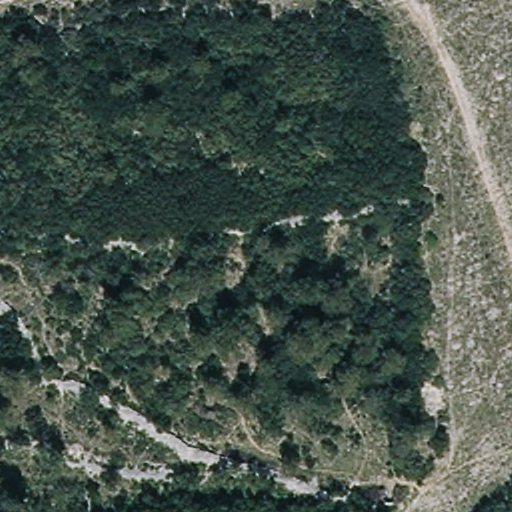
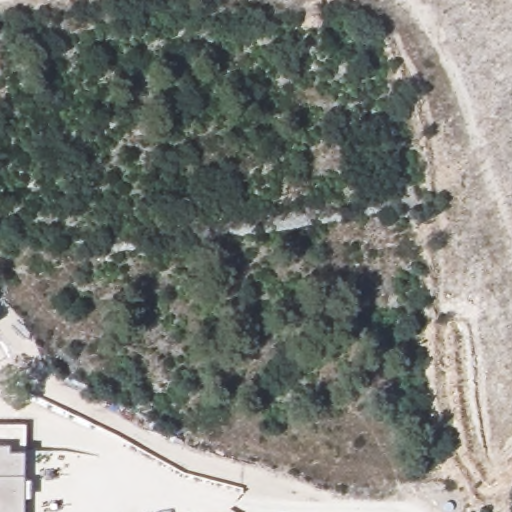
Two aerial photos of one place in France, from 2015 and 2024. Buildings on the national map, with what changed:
new [(24,453),(24,480),(31,481),(31,498),(24,498),(23,512),(0,512),(0,426),(24,426),(24,453)]

